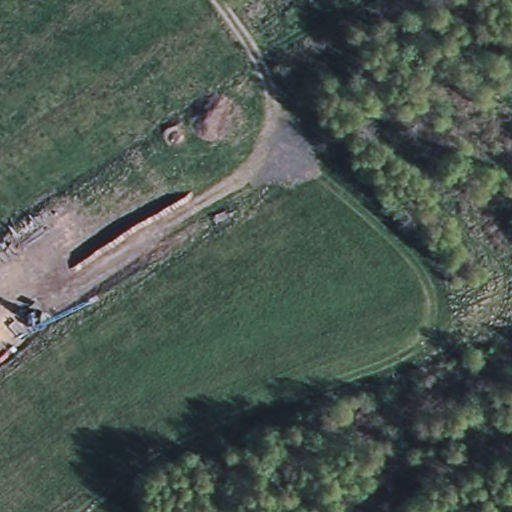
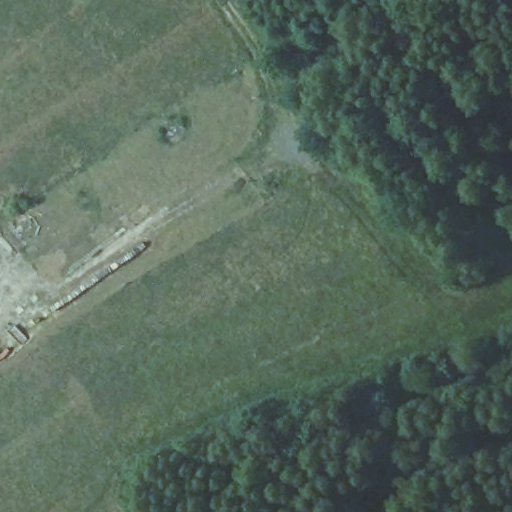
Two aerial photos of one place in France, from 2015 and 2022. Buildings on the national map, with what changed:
[]

